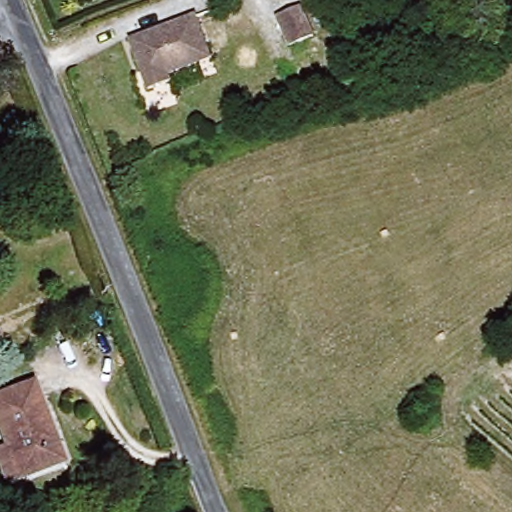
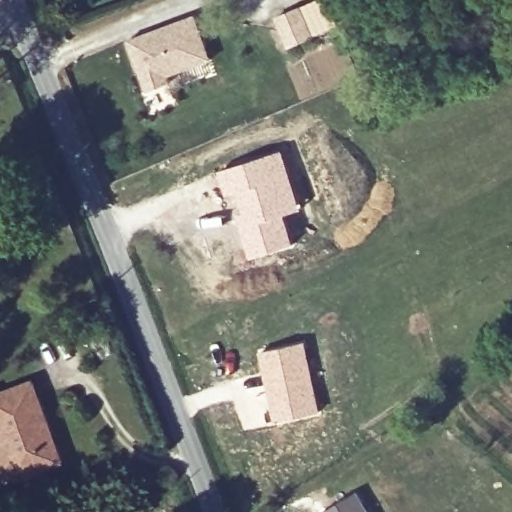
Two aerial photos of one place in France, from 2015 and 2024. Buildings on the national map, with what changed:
unchanged [(290,44),(277,14),(299,4),(313,34),(290,44)]
unchanged [(197,62),(169,72),(170,80),(147,87),(128,37),(194,12),(209,47),(211,56),(197,62)]
new [(284,148),(304,208),(287,214),(297,245),(252,257),(233,194),(227,196),(219,170),(284,148)]
new [(306,340),(322,412),(276,422),(257,350),(306,340)]
unchanged [(0,448),(10,443),(0,416),(0,386),(4,393),(39,379),(66,456),(21,472),(9,477),(0,454),(0,448)]
new [(355,490),(369,512),(322,512),(355,490)]

